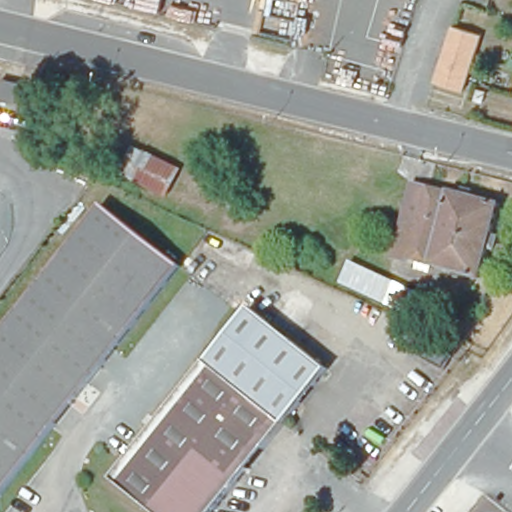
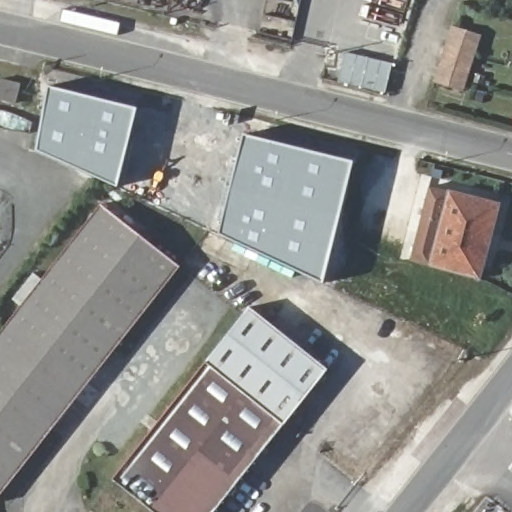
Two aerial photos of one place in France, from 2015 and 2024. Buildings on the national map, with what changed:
demolished [(451,42),(450,52),(461,55),(454,81),(370,58),(378,22),(451,42)]
new [(465,92),(434,82),(453,26),(483,33),(465,92)]
demolished [(497,64),(512,67),(512,91),(490,87),(497,64)]
unchanged [(21,107),(1,101),(5,83),(26,89),(21,107)]
new [(48,86),(137,108),(118,187),(35,150),(48,86)]
new [(243,135),(353,161),(322,283),(220,235),(243,135)]
demolished [(180,166),(162,192),(124,174),(132,162),(140,165),(145,152),(140,150),(145,140),(158,144),(155,154),(166,159),(172,151),(185,156),(180,166)]
unchanged [(432,195),(497,212),(478,285),(413,269),(432,195)]
unchanged [(0,346),(105,211),(183,271),(0,503),(0,346)]
demolished [(358,267),(390,282),(386,292),(411,302),(405,316),(348,291),(358,267)]
unchanged [(250,317),(324,378),(214,512),(152,512),(116,483),(250,317)]

